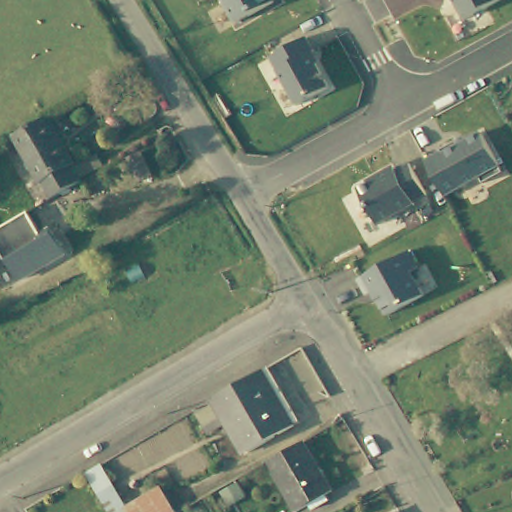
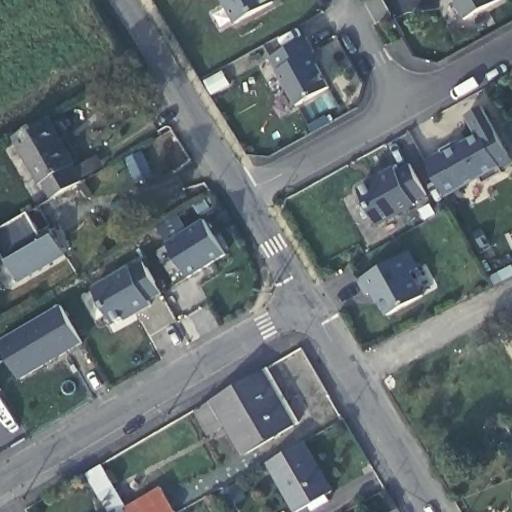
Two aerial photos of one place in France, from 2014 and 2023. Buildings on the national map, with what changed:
unchanged [(227,0),(275,0),(277,4),(240,25),(227,0)]
unchanged [(453,0),(499,0),(465,21),(453,0)]
unchanged [(270,57),(308,39),(330,88),(299,104),(270,57)]
unchanged [(82,162),(81,163),(90,180),(61,197),(50,179),(47,180),(21,134),(57,114),(82,162)]
unchanged [(426,162),(483,133),(501,168),(447,198),(426,162)]
unchanged [(356,189),(393,165),(398,173),(414,165),(431,198),(415,207),(378,225),(356,189)]
unchanged [(17,268),(6,249),(4,250),(0,243),(0,216),(27,202),(39,224),(49,218),(51,222),(62,244),(17,268)]
new [(227,254),(189,279),(167,242),(206,219),(227,254)]
unchanged [(364,278),(412,252),(422,268),(412,274),(424,297),(389,317),(364,278)]
new [(130,266),(131,268),(144,261),(163,293),(150,302),(152,307),(126,321),(123,318),(115,323),(92,287),(130,266)]
new [(20,380),(0,347),(0,342),(63,305),(83,343),(20,380)]
unchanged [(253,450),(234,420),(214,432),(200,407),(260,372),(266,368),(280,393),(298,423),(253,450)]
new [(0,392),(0,389),(1,391),(0,392)]
unchanged [(311,511),(308,505),(297,512),(268,462),(302,443),(331,492),(320,498),(323,503),(311,511)]
unchanged [(82,472),(97,463),(117,495),(104,504),(82,472)]
unchanged [(174,508),(176,512),(132,512),(165,492),(174,508)]
unchanged [(114,497),(117,495),(119,497),(129,512),(109,512),(104,504),(114,497)]

